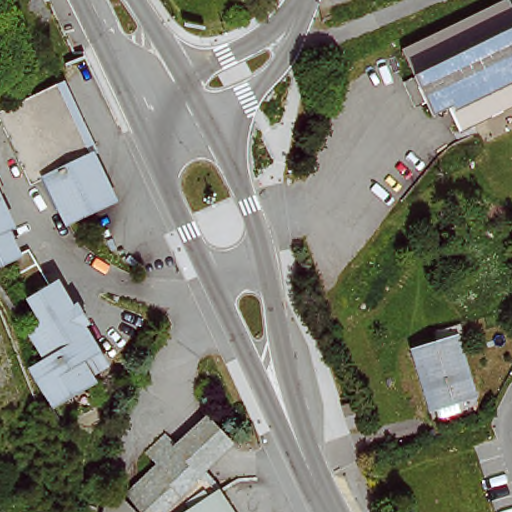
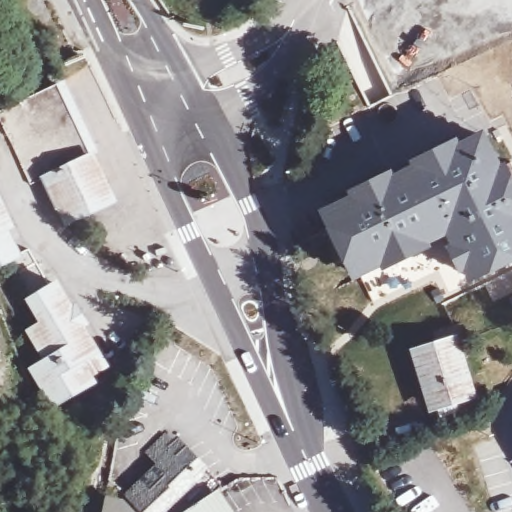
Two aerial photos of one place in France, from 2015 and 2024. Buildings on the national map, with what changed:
demolished [(432,76),(447,69),(442,60),(512,28),(512,120),(477,136),(465,109),(450,116),(432,76)]
unchanged [(109,207),(72,223),(52,178),(37,184),(5,111),(34,98),(53,89),(65,84),(110,190),(115,204),(109,207)]
new [(396,175),(412,166),(410,162),(459,138),(461,143),(484,130),(502,164),(505,163),(512,175),(512,263),(470,284),(465,272),(460,274),(447,248),(452,245),(447,236),(432,243),(434,246),(384,272),(381,267),(354,281),(320,211),(351,195),(349,191),(394,170),(396,175)]
unchanged [(20,252),(0,262),(0,213),(20,252)]
unchanged [(90,330),(84,338),(95,374),(50,404),(24,367),(34,357),(23,332),(35,319),(24,298),(55,281),(90,330)]
unchanged [(460,335),(480,404),(430,417),(412,348),(440,340),(435,323),(462,315),(467,333),(460,335)]
unchanged [(116,507),(124,500),(131,508),(135,505),(138,502),(130,493),(140,483),(160,465),(154,457),(149,452),(155,445),(165,437),(173,446),(174,446),(200,423),(224,453),(198,476),(214,495),(211,498),(215,505),(220,512),(115,512),(115,511),(116,507)]

